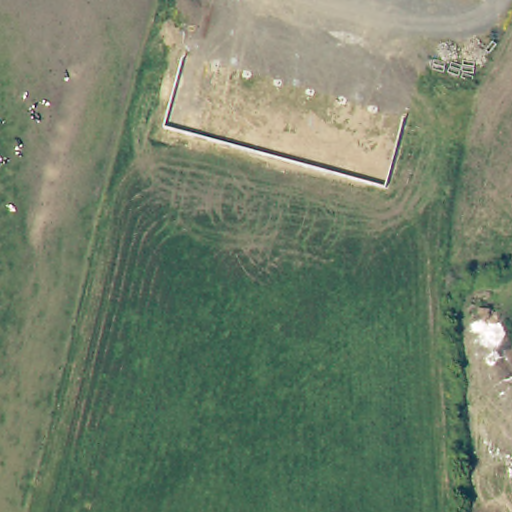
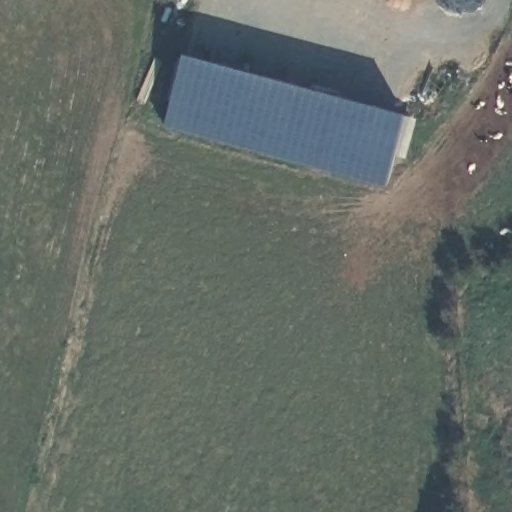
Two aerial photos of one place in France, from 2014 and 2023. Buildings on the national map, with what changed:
new [(407,116),(387,187),(166,127),(185,55),(407,116)]

